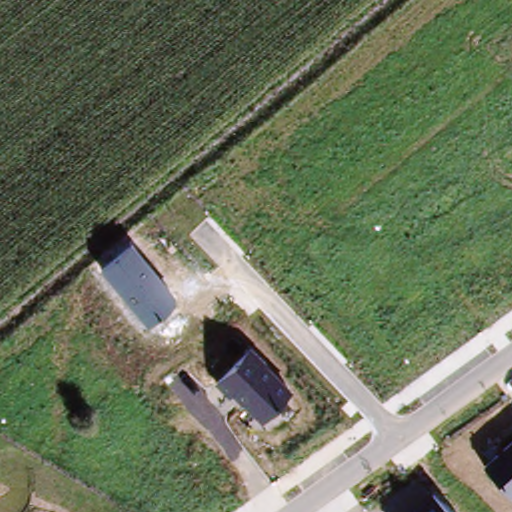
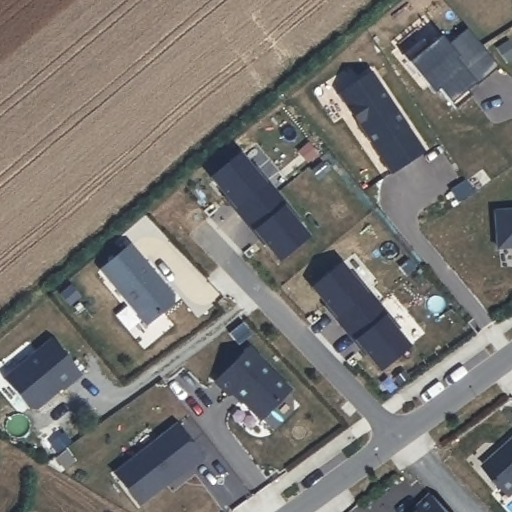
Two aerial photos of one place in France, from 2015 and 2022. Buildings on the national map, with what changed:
new [(402,54),(423,39),(429,45),(440,35),(448,42),(467,27),(499,65),(475,83),(467,90),(471,95),(456,108),(452,102),(440,88),(435,92),(410,61),(402,54)]
new [(374,78),(421,156),(389,177),(342,99),(374,78)]
new [(307,237),(277,261),(263,243),(265,241),(255,229),(245,217),(236,205),(225,193),(223,195),(209,177),(238,154),(252,170),(254,168),(265,181),(275,193),(285,205),(296,218),(293,221),(307,237)]
new [(495,249),(494,212),(512,211),(512,248),(495,249)]
unchanged [(100,269),(132,243),(175,295),(174,305),(147,325),(100,269)]
new [(407,347),(378,371),(364,353),(367,351),(357,339),(347,327),(337,315),(327,303),(324,305),(310,287),(339,264),(352,280),(355,277),(366,291),(376,303),(385,315),(397,328),(394,331),(407,347)]
new [(50,336),(82,373),(63,390),(61,388),(38,407),(27,408),(3,377),(50,336)]
unchanged [(232,390),(227,393),(217,381),(250,349),(292,388),(260,420),(232,390)]
new [(201,457),(188,467),(186,465),(137,505),(112,474),(175,424),(201,457)]
unchanged [(484,464),(512,441),(512,496),(510,497),(484,464)]
unchanged [(450,512),(420,512),(436,497),(450,512)]

